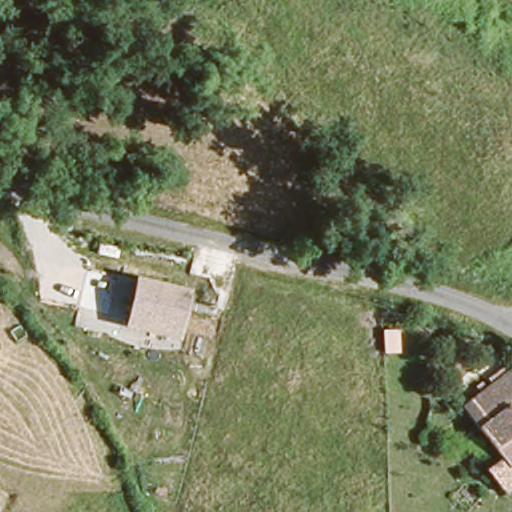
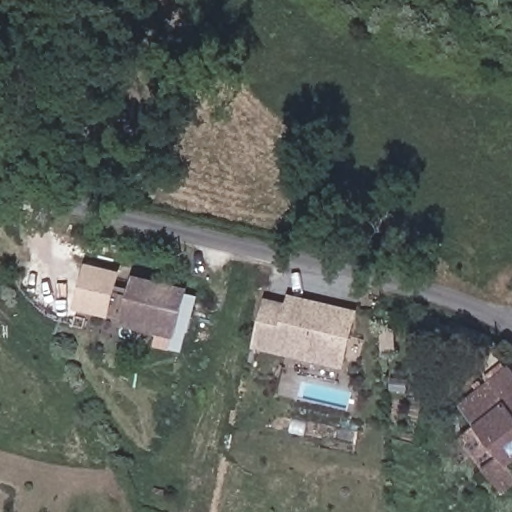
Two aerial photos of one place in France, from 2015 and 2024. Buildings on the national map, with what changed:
new [(121,271),(109,318),(76,310),(84,263),(121,271)]
unchanged [(134,274),(189,285),(175,339),(123,326),(134,274)]
new [(252,349),(264,297),(285,302),(288,294),(357,310),(343,371),(252,349)]
unchanged [(512,359),(512,461),(512,489),(509,491),(489,468),(507,455),(458,394),(508,353),(512,359)]

